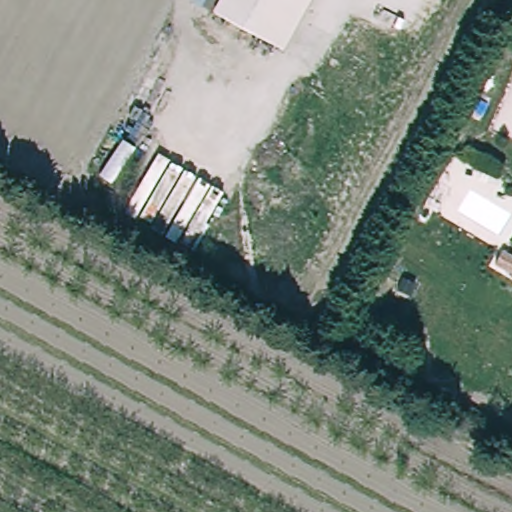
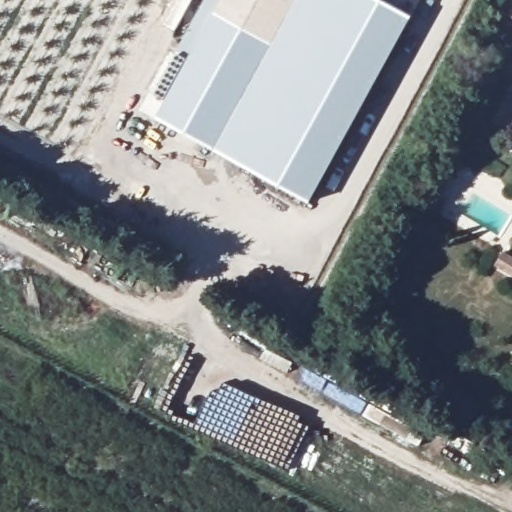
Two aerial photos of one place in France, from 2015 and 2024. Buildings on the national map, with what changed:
new [(310,202),(215,149),(156,117),(190,58),(176,50),(202,6),(215,13),(200,41),(263,72),(276,48),(285,53),(313,0),(382,0),(412,16),(310,202)]
unchanged [(276,48),(263,72),(200,41),(215,13),(191,0),(313,0),(285,53),(276,48)]

